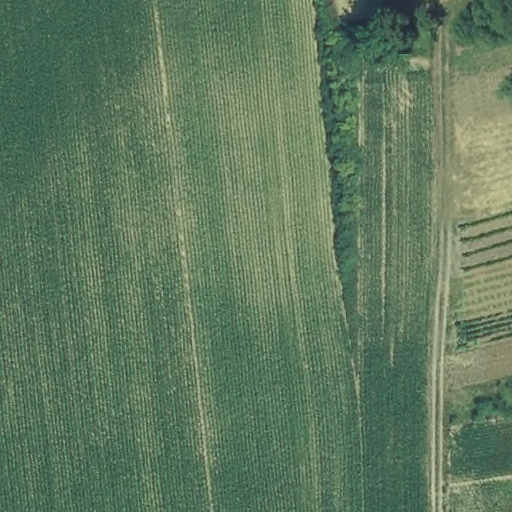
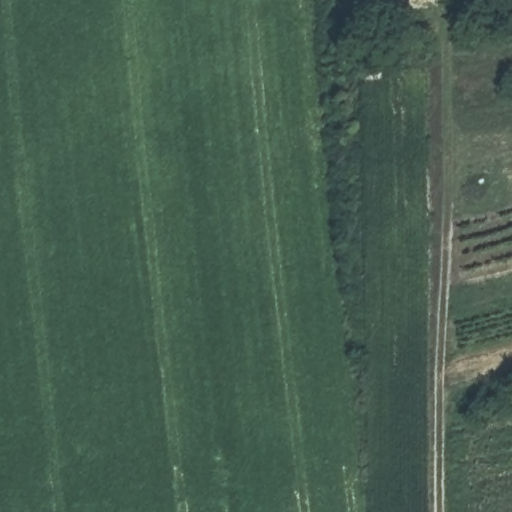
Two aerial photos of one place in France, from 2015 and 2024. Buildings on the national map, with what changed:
[]

